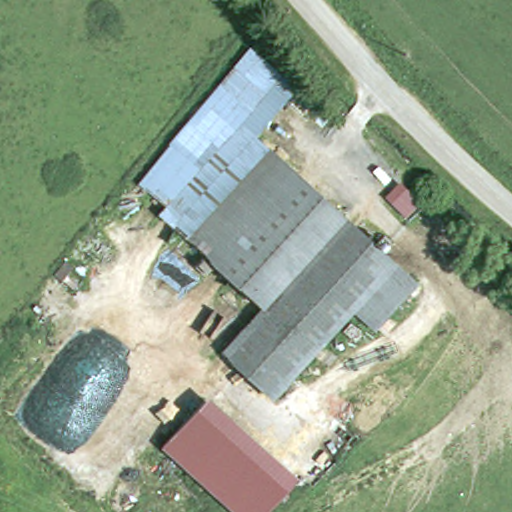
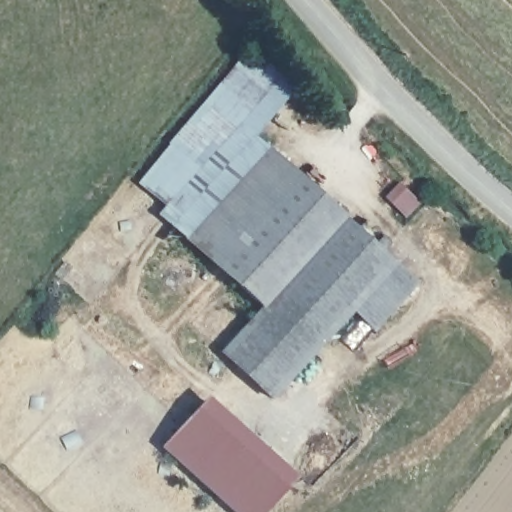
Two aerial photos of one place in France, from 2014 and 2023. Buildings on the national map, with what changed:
unchanged [(170,208),(143,185),(252,47),(282,70),(240,122),(170,208)]
unchanged [(170,208),(240,122),(430,293),(391,337),(370,319),(290,408),(230,355),(270,309),(163,217),(170,208)]
unchanged [(295,475),(263,512),(244,512),(165,444),(207,396),(295,475)]

